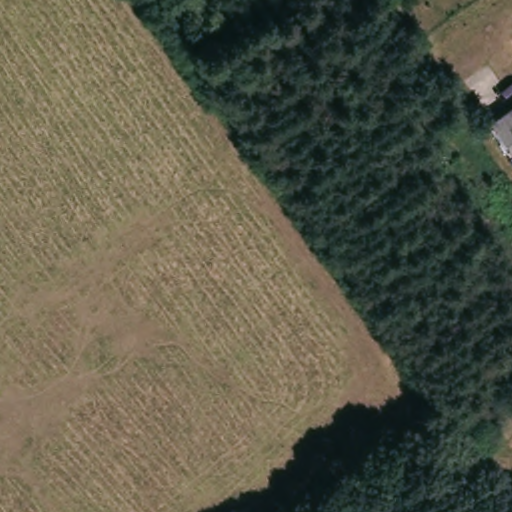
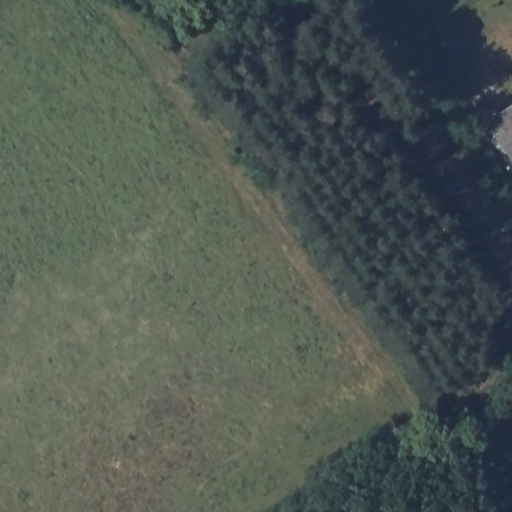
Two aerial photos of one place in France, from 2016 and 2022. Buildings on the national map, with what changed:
unchanged [(488,124),(512,106),(512,156),(488,124)]

